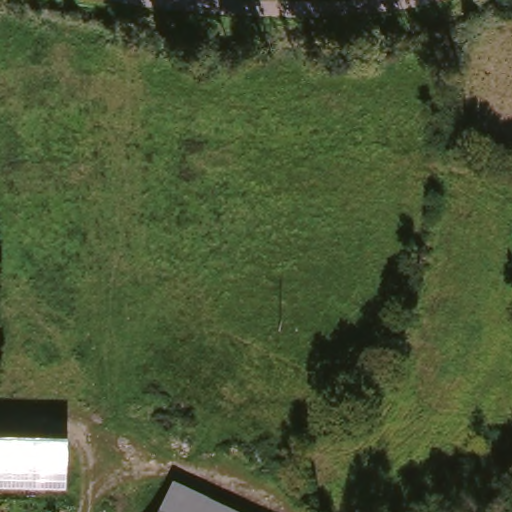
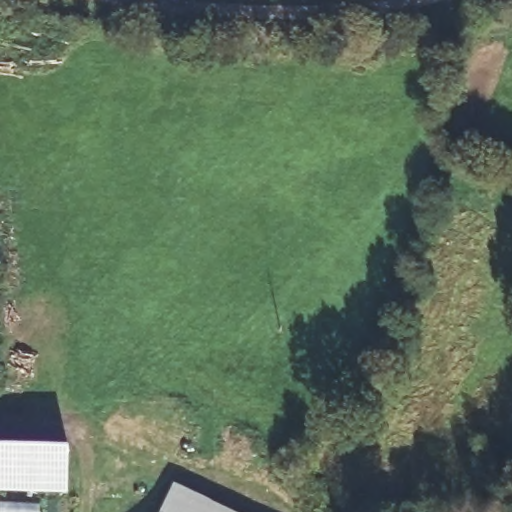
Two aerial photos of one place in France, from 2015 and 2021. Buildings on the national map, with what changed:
unchanged [(69,450),(66,490),(0,488),(0,447),(69,450)]
unchanged [(168,481),(236,512),(153,512),(168,481)]

